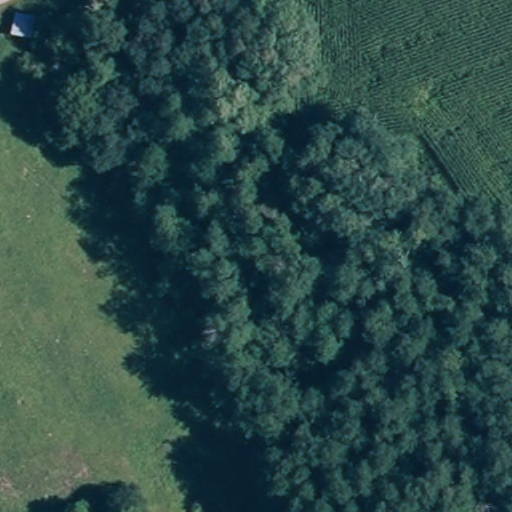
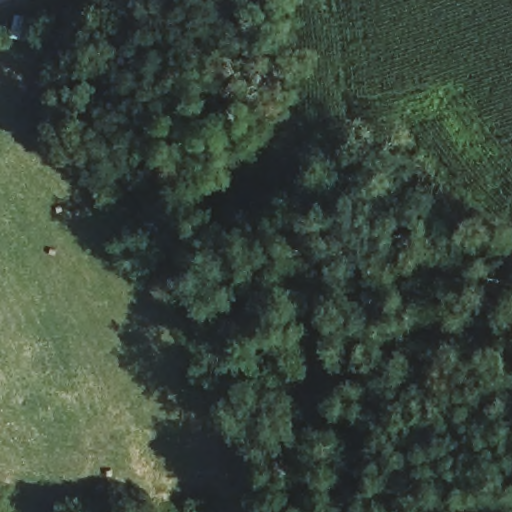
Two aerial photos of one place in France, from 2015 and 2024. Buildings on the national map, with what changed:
unchanged [(9,37),(14,12),(49,22),(46,44),(9,37)]

